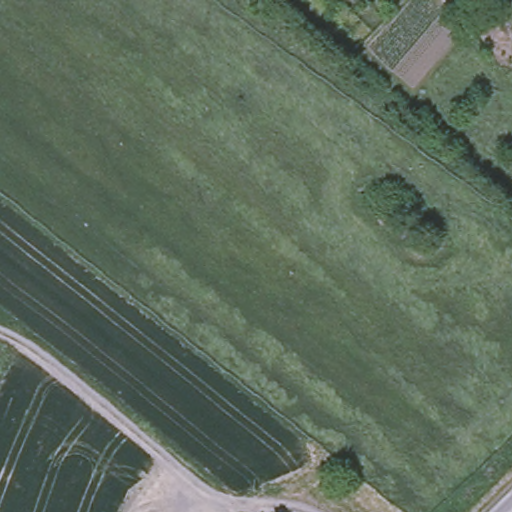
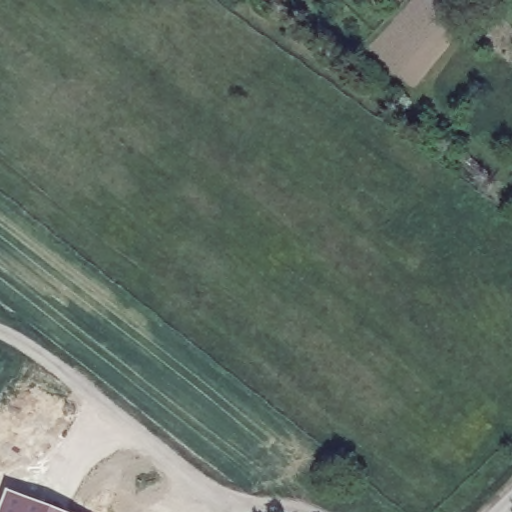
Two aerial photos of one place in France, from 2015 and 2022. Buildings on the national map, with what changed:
new [(62,512),(0,512),(0,505),(5,491),(62,512)]

